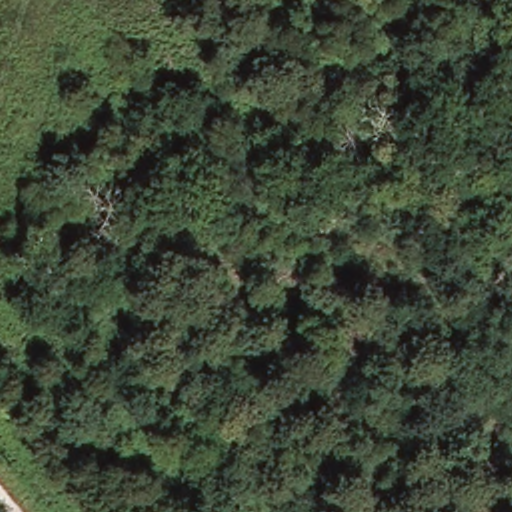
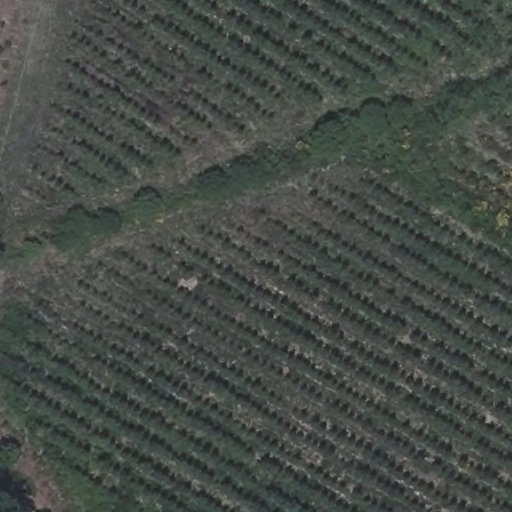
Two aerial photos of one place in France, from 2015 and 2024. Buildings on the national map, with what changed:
[]

